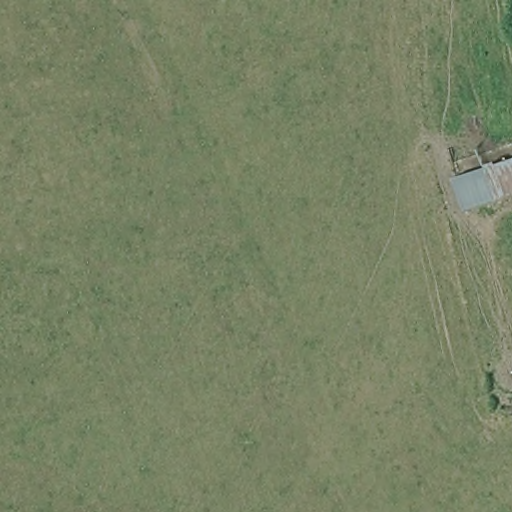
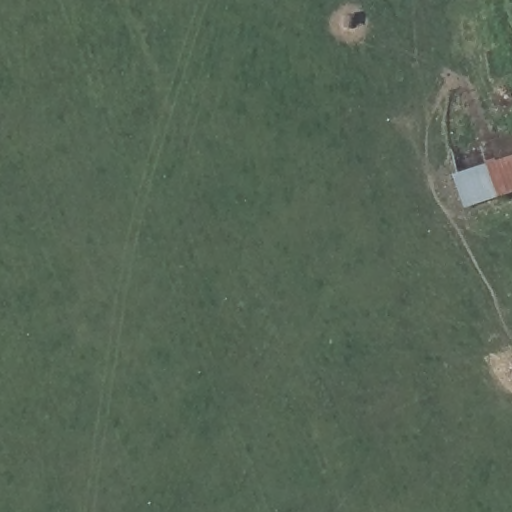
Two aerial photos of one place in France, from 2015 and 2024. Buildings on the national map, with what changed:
unchanged [(486,166),(495,200),(462,210),(452,177),(486,166)]

